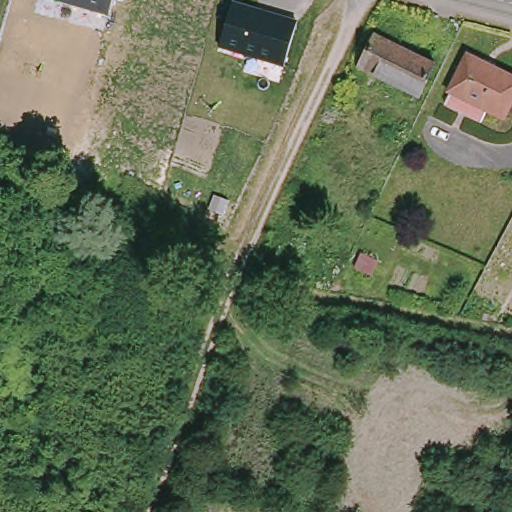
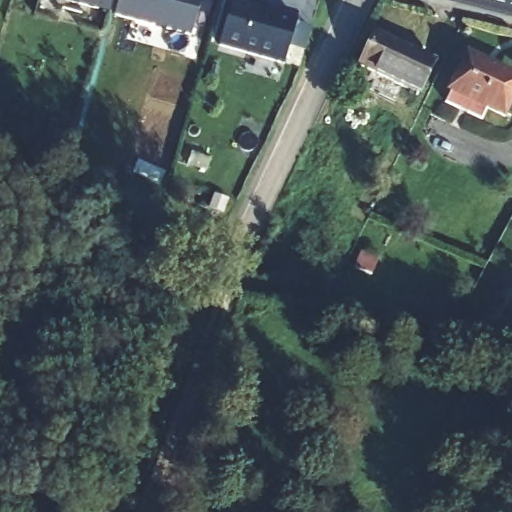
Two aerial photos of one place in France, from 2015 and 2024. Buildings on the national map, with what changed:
unchanged [(108,17),(45,0),(112,0),(108,17)]
new [(115,17),(120,0),(202,0),(190,38),(115,17)]
unchanged [(297,22),(285,66),(219,47),(232,2),(297,22)]
unchanged [(359,69),(373,40),(436,69),(420,100),(359,69)]
unchanged [(512,79),(512,101),(504,119),(489,112),(483,125),(447,107),(452,95),(467,59),(512,79)]
demolished [(12,118),(0,133),(0,110),(12,118)]
unchanged [(362,265),(369,249),(383,256),(375,272),(362,265)]

